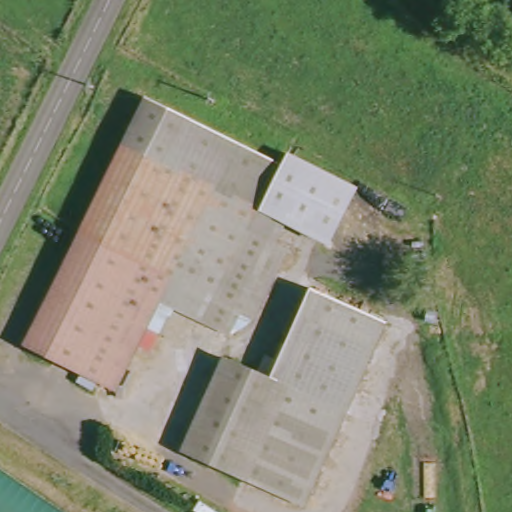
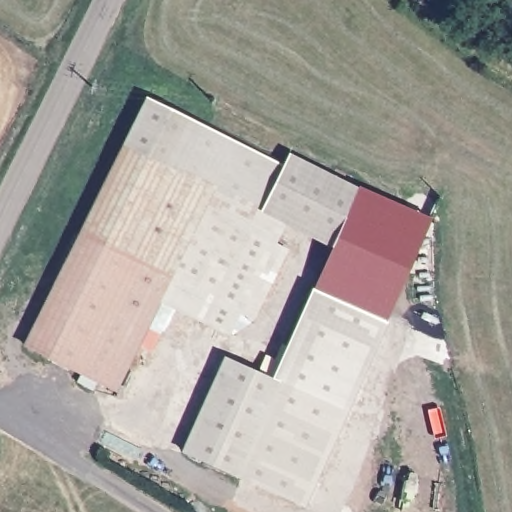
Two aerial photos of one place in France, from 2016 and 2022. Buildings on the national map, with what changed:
unchanged [(142,96),(279,163),(256,209),(120,141),(142,96)]
unchanged [(154,333),(142,326),(110,388),(21,343),(120,141),(256,209),(279,222),(268,243),(268,244),(223,332),(156,299),(168,306),(154,333)]
unchanged [(285,151),(359,187),(329,246),(279,222),(256,209),(279,163),(285,151)]
new [(331,248),(359,187),(431,220),(386,321),(313,289),(331,248)]
unchanged [(268,244),(268,243),(282,250),(248,319),(234,313),(268,244)]
unchanged [(272,380),(313,289),(386,321),(304,504),(184,450),(226,359),(272,380)]
unchanged [(0,468),(64,512),(0,512),(0,468)]

